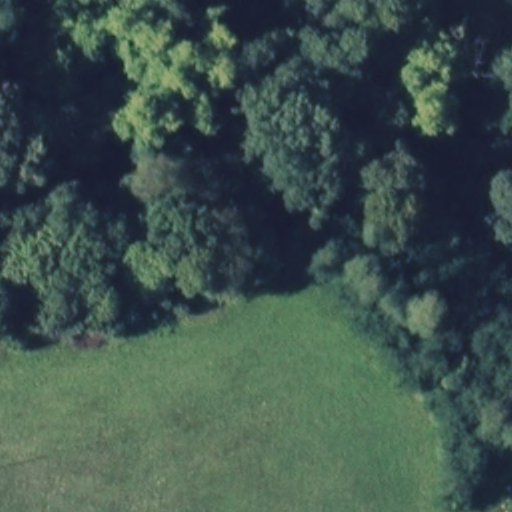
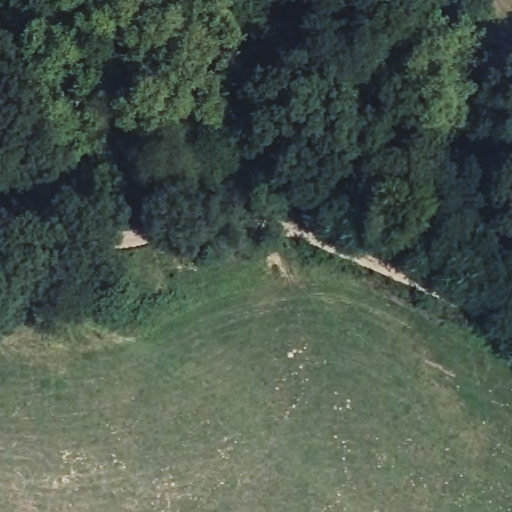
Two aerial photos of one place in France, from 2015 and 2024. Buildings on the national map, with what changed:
[]

